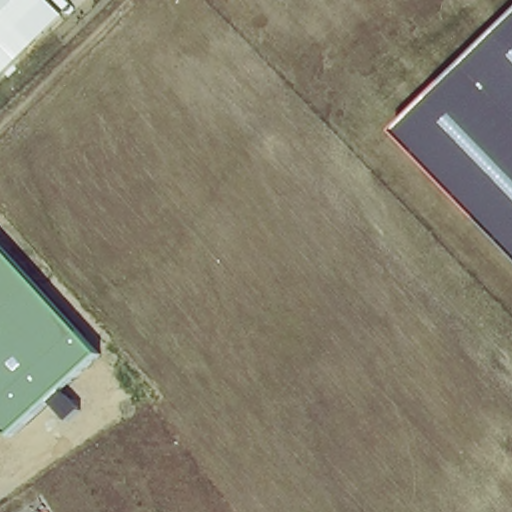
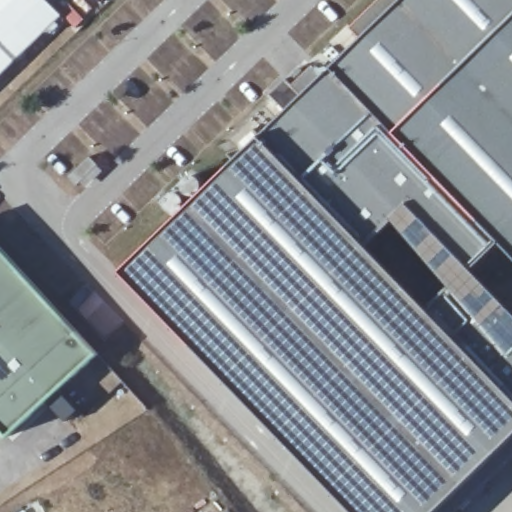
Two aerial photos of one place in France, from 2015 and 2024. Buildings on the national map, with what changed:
unchanged [(63,14),(0,77),(0,0),(48,0),(63,14)]
new [(355,512),(124,270),(234,161),(224,151),(277,98),(271,92),(288,76),(294,82),(349,28),(360,39),(402,0),(512,0),(512,20),(397,132),(500,238),(470,267),(408,200),(365,243),(428,307),(451,287),(512,356),(512,434),(435,512),(355,512)]
unchanged [(512,251),(397,132),(512,20),(512,251)]
unchanged [(99,354),(8,437),(0,428),(0,247),(99,354)]

